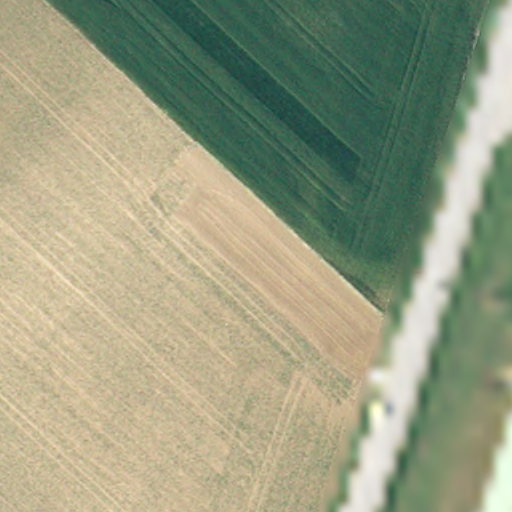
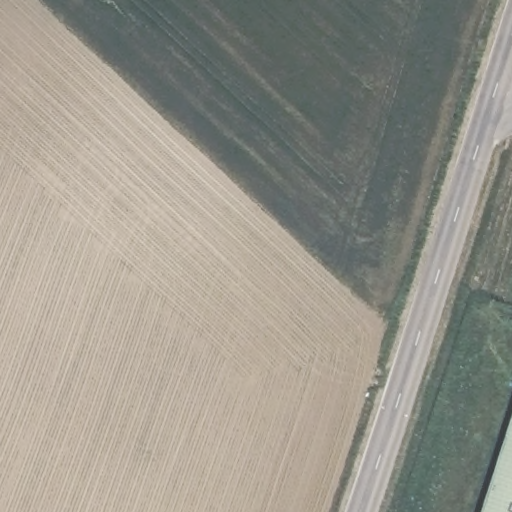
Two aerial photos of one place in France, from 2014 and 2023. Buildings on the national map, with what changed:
unchanged [(490,512),(512,440),(512,512),(490,512)]

